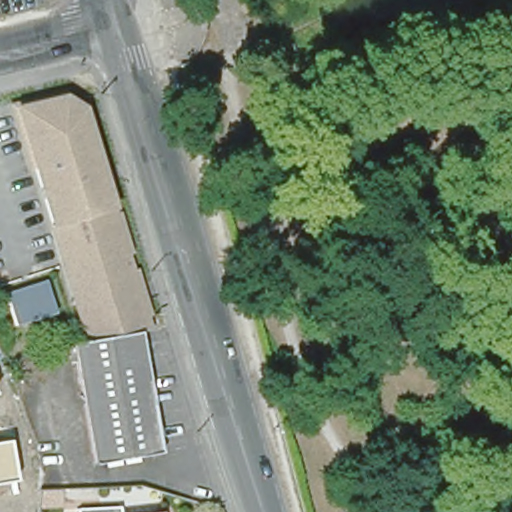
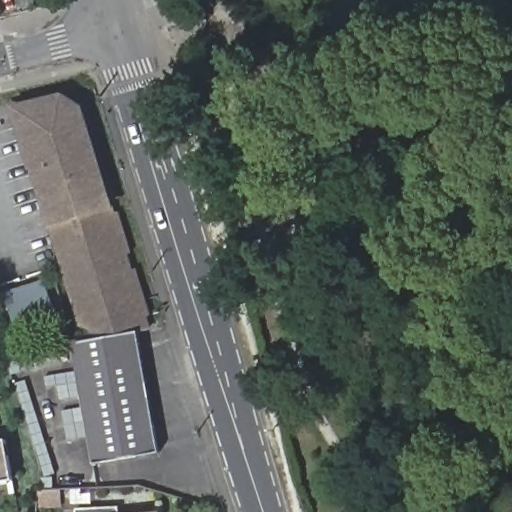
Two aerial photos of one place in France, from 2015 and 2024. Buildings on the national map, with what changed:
unchanged [(63,100),(80,111),(145,333),(102,340),(85,342),(17,110),(63,100)]
unchanged [(5,295),(46,283),(56,315),(15,327),(5,295)]
unchanged [(71,346),(85,342),(102,340),(136,335),(156,453),(90,464),(71,346)]
unchanged [(6,440),(15,482),(0,485),(0,441),(6,440)]
unchanged [(119,508),(119,512),(76,512),(77,509),(119,508)]

